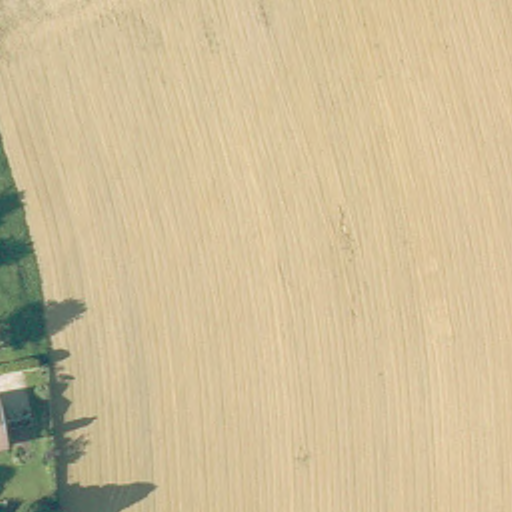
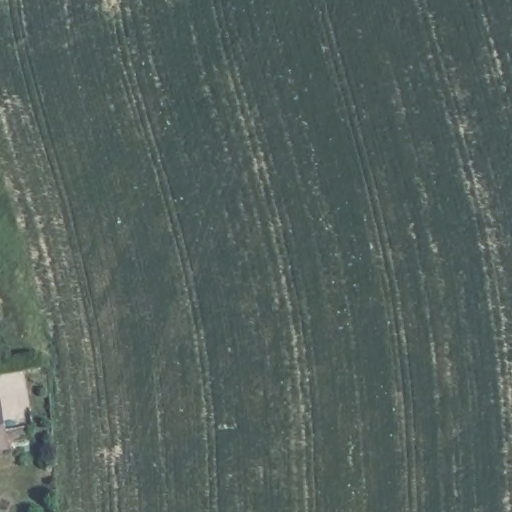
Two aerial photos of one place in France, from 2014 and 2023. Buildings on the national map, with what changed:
unchanged [(0,449),(0,415),(6,447),(0,449)]

